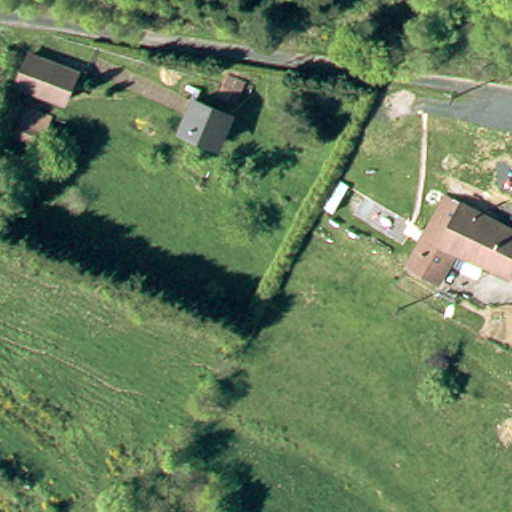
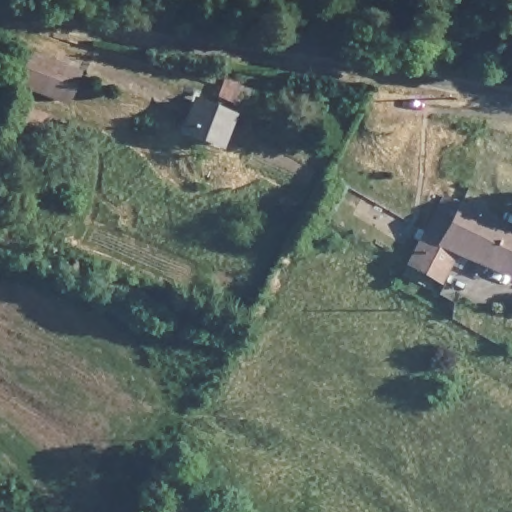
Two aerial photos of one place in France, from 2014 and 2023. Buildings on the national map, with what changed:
unchanged [(27,61),(78,82),(67,111),(15,90),(27,61)]
unchanged [(195,109),(233,123),(222,150),(185,136),(195,109)]
unchanged [(455,252),(437,290),(405,273),(442,200),(512,233),(512,252),(501,274),(455,252)]

